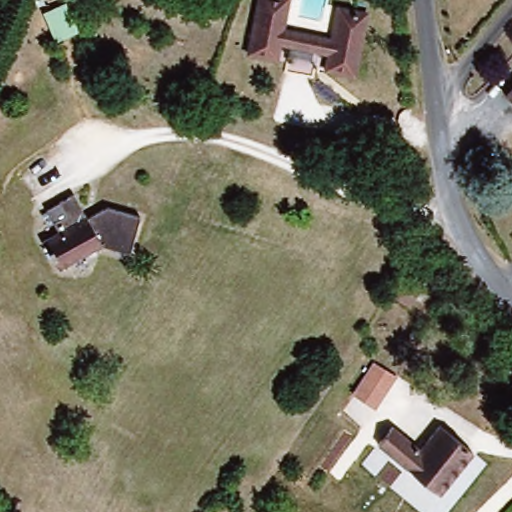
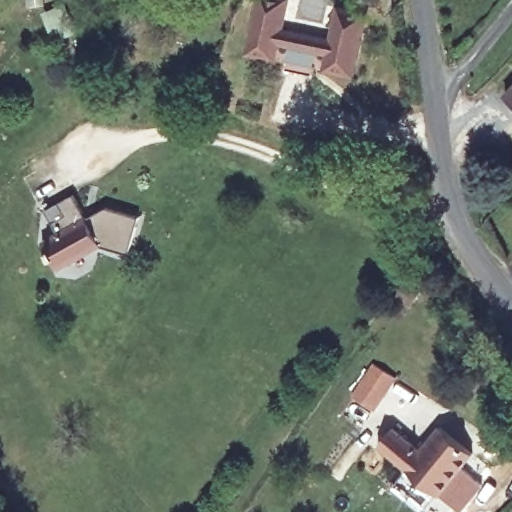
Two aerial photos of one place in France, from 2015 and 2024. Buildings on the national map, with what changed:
unchanged [(311,74),(284,68),(289,42),(277,39),(274,55),(247,49),(259,0),(286,0),(280,24),(333,36),(338,7),(365,11),(351,73),(324,66),(329,51),(317,49),(311,74)]
unchanged [(512,92),(512,104),(506,98),(512,92)]
unchanged [(89,217),(109,207),(141,218),(131,255),(99,245),(63,268),(47,241),(58,234),(48,214),(77,196),(89,217)]
unchanged [(437,493),(380,441),(394,425),(419,448),(440,424),(472,454),(437,493)]

